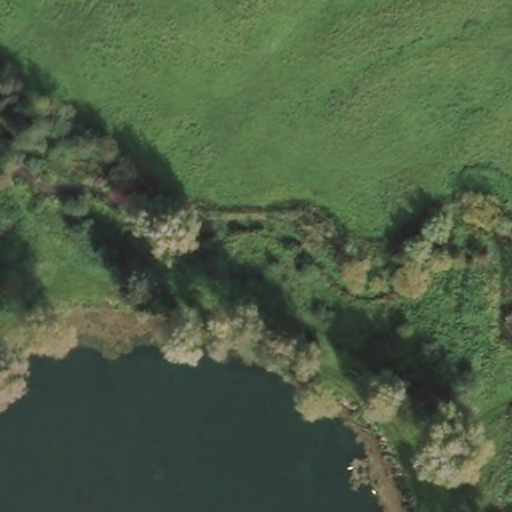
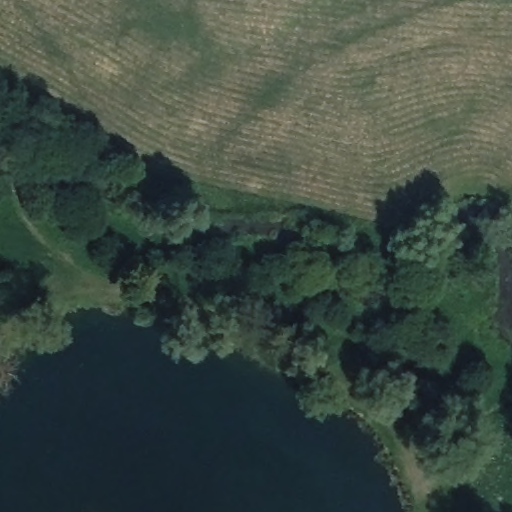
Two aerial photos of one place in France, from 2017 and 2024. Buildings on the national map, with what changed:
[]

